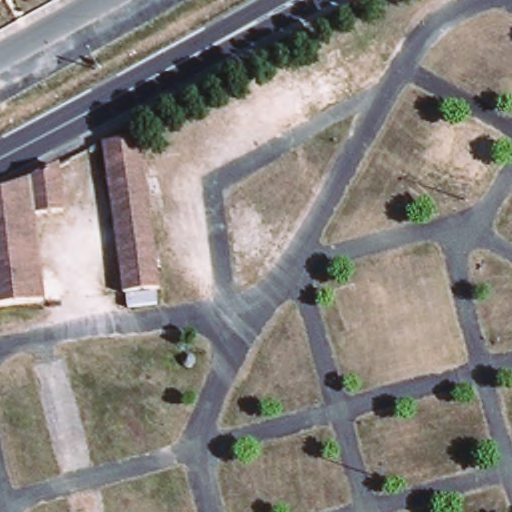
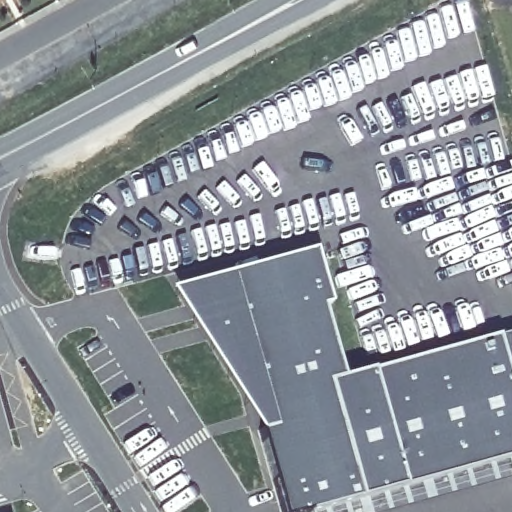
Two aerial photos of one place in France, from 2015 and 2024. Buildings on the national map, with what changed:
demolished [(142,136),(149,135),(172,283),(135,288),(113,140),(130,137),(142,136)]
demolished [(44,213),(55,299),(0,305),(0,192),(68,163),(76,208),(44,213)]
new [(315,249),(331,306),(323,309),(342,377),(485,337),(512,331),(512,459),(466,471),(405,489),(383,497),(320,512),(279,512),(255,432),(238,401),(167,289),(240,267),(315,249)]
new [(512,459),(512,480),(471,489),(466,471),(512,459)]
new [(406,492),(405,489),(466,471),(471,489),(407,507),(403,493),(406,492)]

